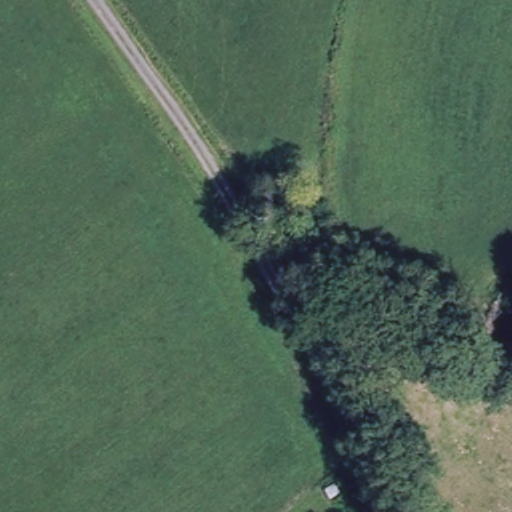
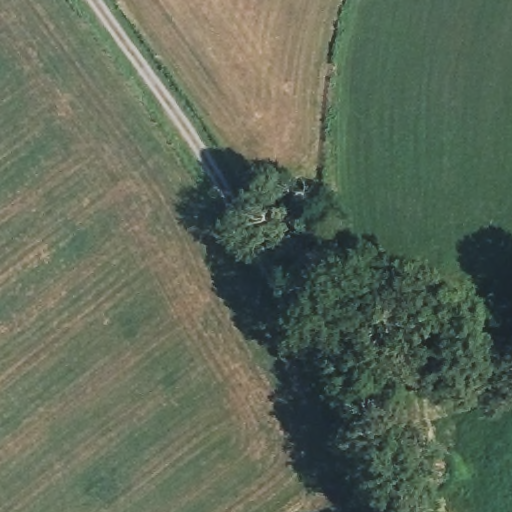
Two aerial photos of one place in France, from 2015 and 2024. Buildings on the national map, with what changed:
[]

